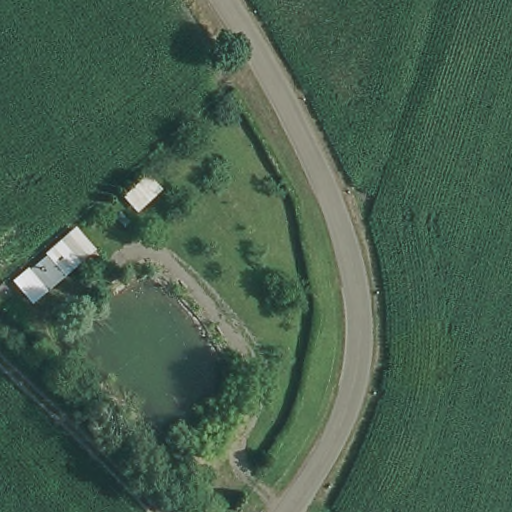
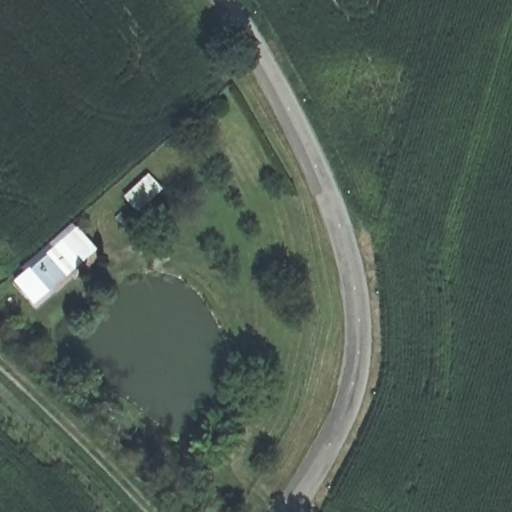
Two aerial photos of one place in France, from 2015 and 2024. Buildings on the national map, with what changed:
unchanged [(97,211),(105,224),(86,239),(100,256),(82,275),(74,266),(48,291),(27,265),(97,211)]

